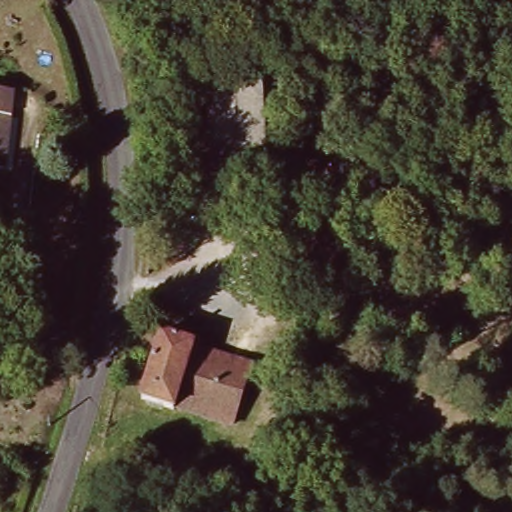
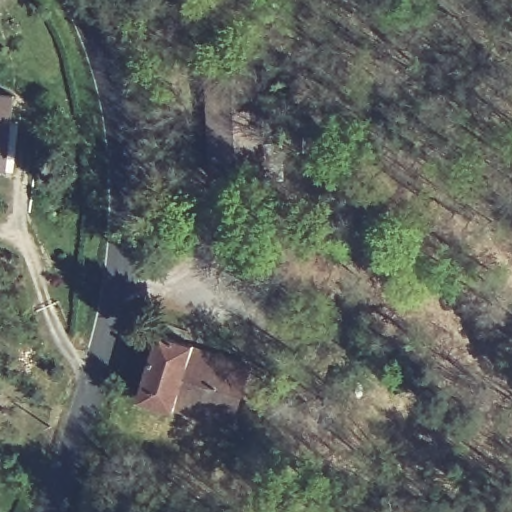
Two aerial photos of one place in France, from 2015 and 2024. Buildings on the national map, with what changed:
unchanged [(224,180),(220,83),(276,80),(277,179),(224,180)]
unchanged [(27,86),(18,169),(0,168),(0,83),(27,86)]
unchanged [(251,404),(245,424),(188,406),(187,408),(155,398),(176,333),(208,343),(207,345),(245,358),(264,364),(251,404)]
unchanged [(352,371),(347,386),(331,382),(337,366),(352,371)]

